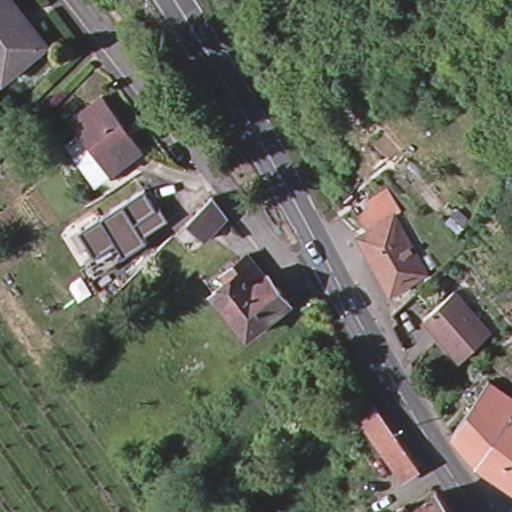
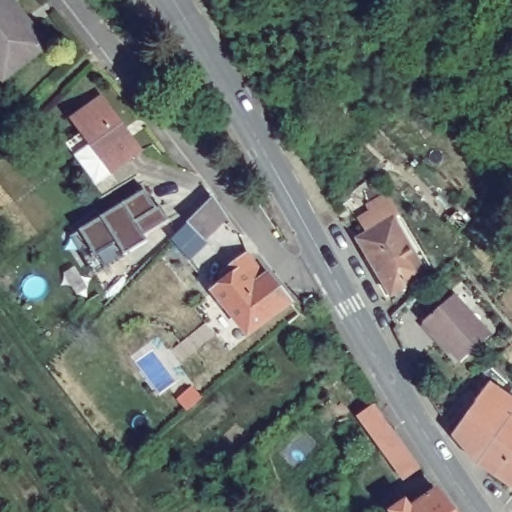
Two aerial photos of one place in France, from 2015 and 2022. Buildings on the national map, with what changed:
unchanged [(0,79),(0,0),(10,0),(24,19),(18,24),(26,33),(28,31),(41,49),(0,79)]
unchanged [(113,169),(68,118),(97,93),(142,143),(113,169)]
unchanged [(144,236),(147,242),(95,274),(85,261),(93,255),(80,232),(143,193),(155,211),(160,208),(168,222),(144,236)]
unchanged [(222,211),(200,233),(185,216),(203,198),(208,193),(222,211)]
unchanged [(389,296),(356,239),(372,229),(363,215),(383,203),(392,218),(423,275),(389,296)]
unchanged [(242,334),(205,293),(219,281),(214,275),(240,254),(259,274),(262,272),(286,299),(242,334)]
unchanged [(485,328),(455,352),(445,341),(421,310),(441,292),(470,316),(485,328)]
unchanged [(512,354),(512,367),(506,362),(512,354)]
unchanged [(473,459),(451,432),(458,422),(472,401),(470,400),(483,381),(512,404),(512,486),(511,487),(472,461),(473,459)]
unchanged [(413,463),(398,475),(353,414),(369,403),(413,463)]
unchanged [(386,506),(399,496),(405,503),(431,484),(452,512),(390,512),(386,506)]

